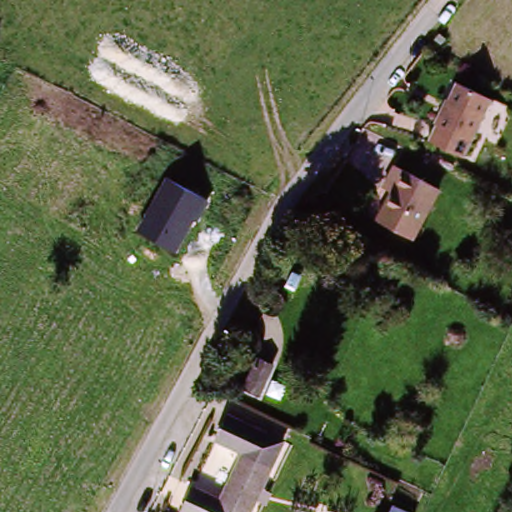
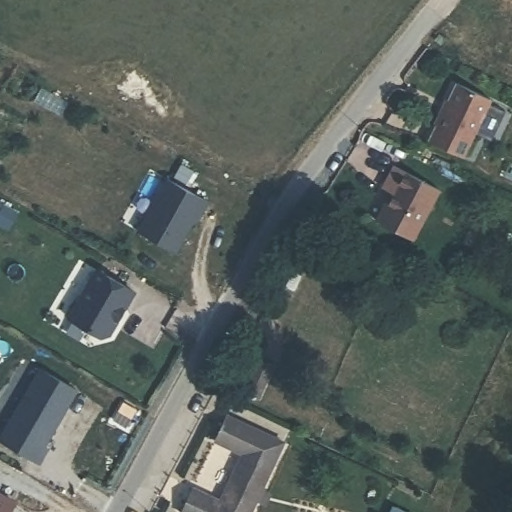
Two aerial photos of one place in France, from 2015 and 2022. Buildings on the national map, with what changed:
unchanged [(486,104),(459,157),(427,141),(455,87),(486,104)]
unchanged [(391,184),(382,180),(390,166),(433,189),(407,237),(373,219),(391,184)]
unchanged [(165,175),(207,201),(196,224),(193,222),(176,254),(134,230),(165,175)]
unchanged [(295,239),(300,230),(308,235),(304,244),(295,239)]
new [(97,267),(135,289),(110,332),(102,335),(70,316),(97,267)]
unchanged [(270,362),(255,391),(240,383),(257,354),(270,362)]
new [(41,366),(77,387),(45,444),(48,446),(40,460),(0,438),(41,366)]
unchanged [(185,512),(181,510),(192,485),(216,495),(237,450),(212,439),(224,411),(287,437),(253,510),(253,512),(185,512)]
new [(18,504),(14,512),(0,512),(0,494),(18,504)]

